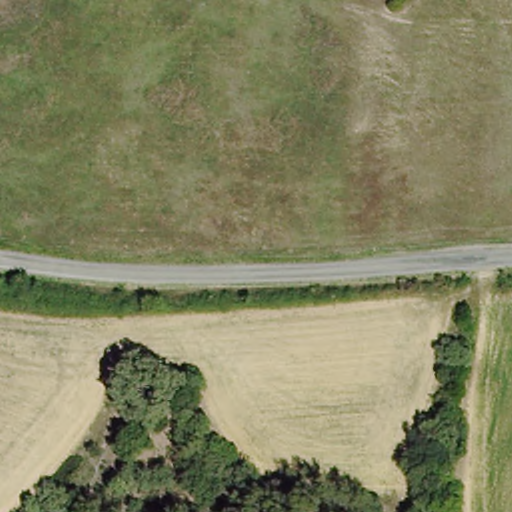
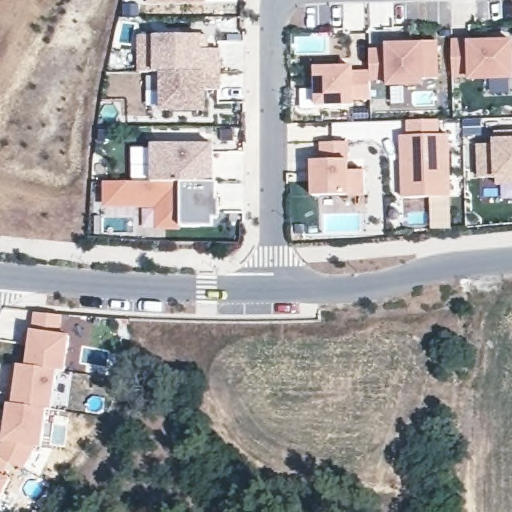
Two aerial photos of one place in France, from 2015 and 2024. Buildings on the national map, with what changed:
new [(140,71),(140,35),(201,35),(201,49),(218,49),(218,71),(140,71)]
new [(470,78),(453,79),(451,40),(467,38),(467,41),(512,40),(512,80),(469,81),(470,78)]
new [(313,67),(353,66),(353,70),(371,70),(369,49),(386,44),(424,44),(438,41),(440,78),(425,77),(426,85),(388,87),(388,80),(370,80),(371,100),(355,100),(355,106),(316,108),(313,67)]
new [(218,89),(204,89),(204,109),(161,109),(161,71),(218,71),(218,89)]
new [(407,120),(437,119),(438,134),(448,134),(449,196),(402,197),(401,136),(408,136),(407,120)]
new [(496,183),(496,176),(480,177),(479,144),(495,144),(495,132),(512,132),(512,183),(496,183)]
new [(347,141),(348,171),(364,170),(365,195),(313,196),(312,160),(322,160),(321,142),(347,141)]
new [(215,144),(216,200),(220,200),(221,220),(214,220),(214,228),(181,229),(156,230),(155,209),(103,209),(104,182),(130,182),(152,183),(151,145),(215,144)]
new [(303,227),(303,236),(295,236),(295,227),(303,227)]
new [(63,335),(71,336),(65,370),(57,370),(53,410),(48,410),(43,448),(35,446),(24,471),(10,461),(1,474),(10,480),(0,499),(0,446),(2,443),(8,405),(13,366),(16,365),(25,367),(31,331),(33,313),(63,316),(63,335)]

